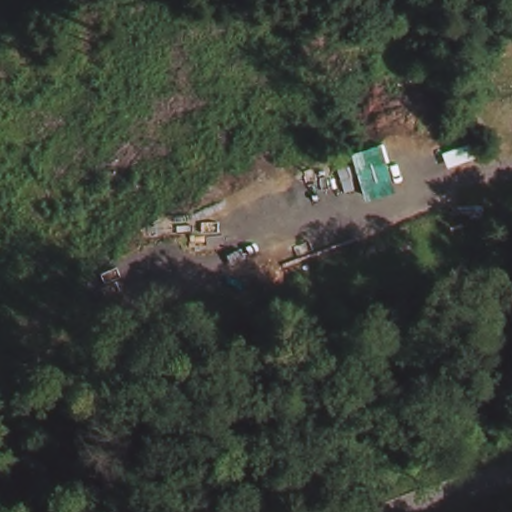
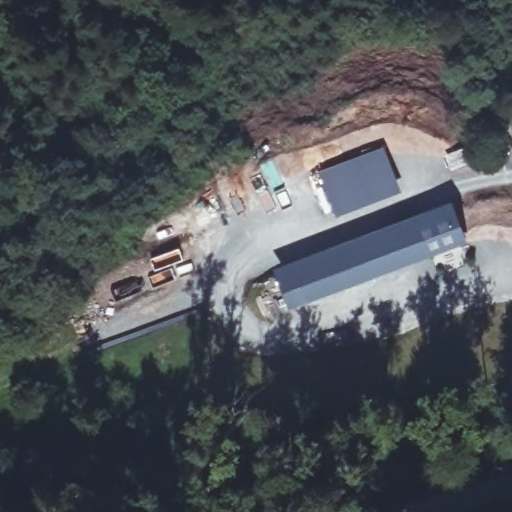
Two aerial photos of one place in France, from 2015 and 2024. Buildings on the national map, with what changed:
new [(507,142),(512,138),(512,149),(507,142)]
new [(401,193),(336,216),(319,172),(384,146),(401,193)]
new [(468,244),(289,311),(273,270),(449,204),(468,244)]

